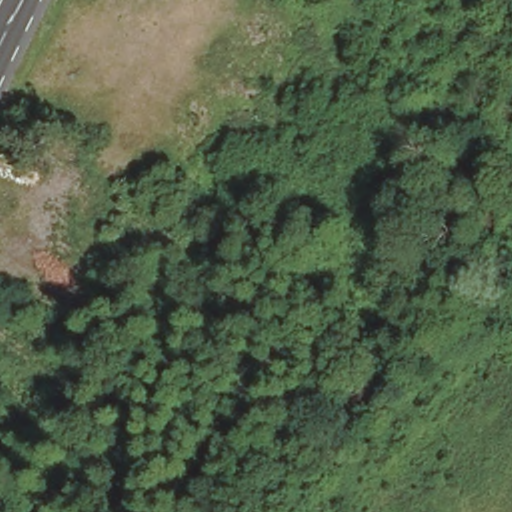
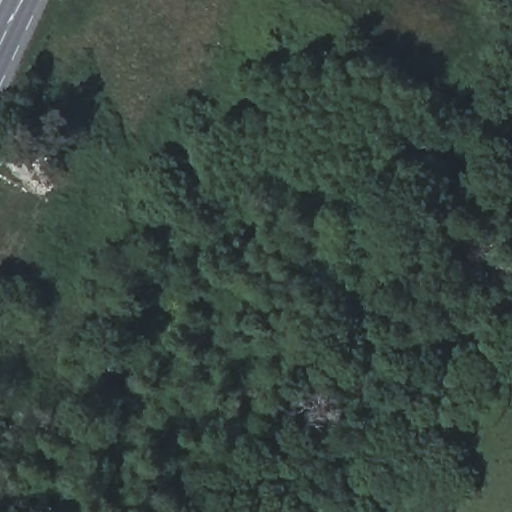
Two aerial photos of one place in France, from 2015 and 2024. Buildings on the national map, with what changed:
unchanged [(346,38),(338,51),(316,37),(323,25),(346,38)]

